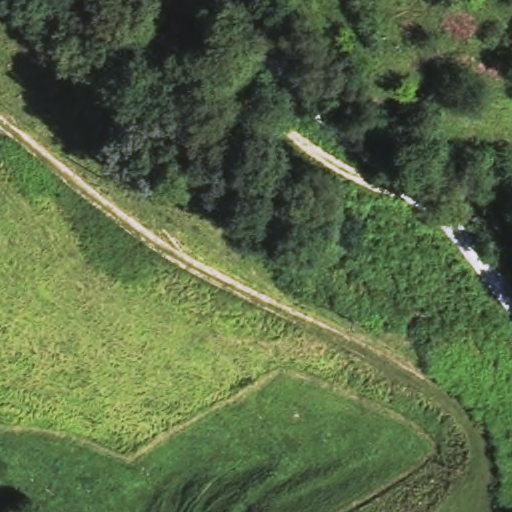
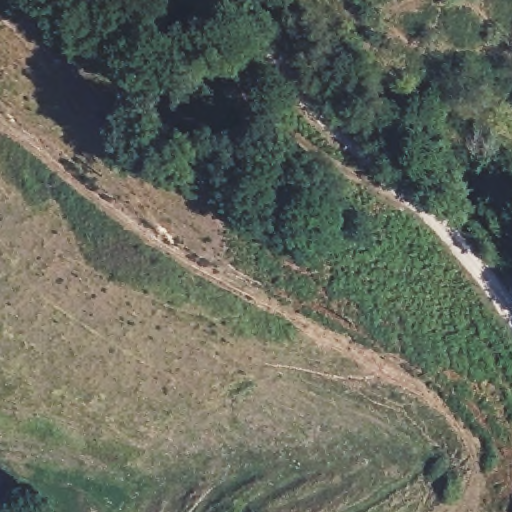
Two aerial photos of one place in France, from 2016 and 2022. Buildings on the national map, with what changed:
[]

